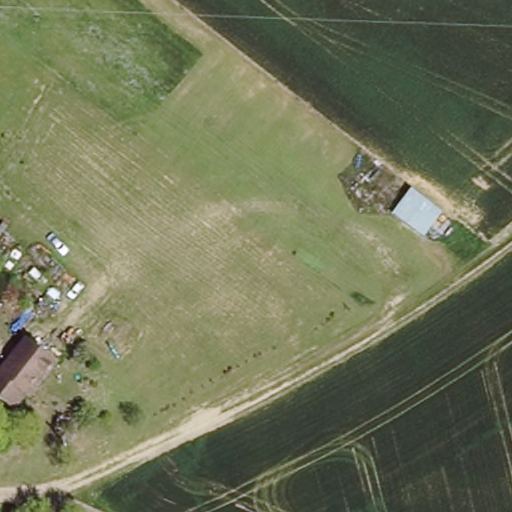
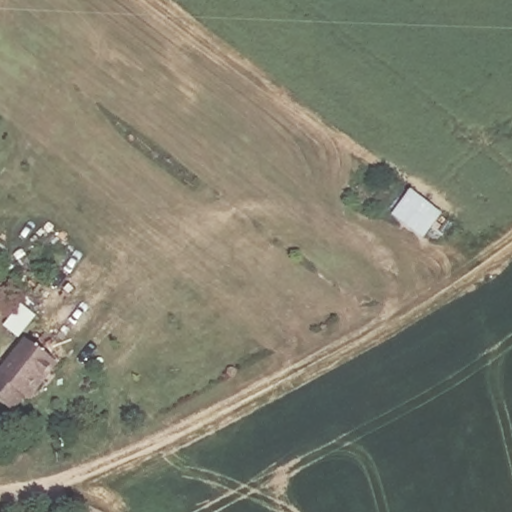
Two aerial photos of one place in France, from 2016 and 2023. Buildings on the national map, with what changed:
unchanged [(413,189),(446,213),(425,238),(395,214),(413,189)]
unchanged [(30,397),(26,394),(14,411),(0,399),(0,373),(3,376),(28,342),(56,363),(30,397)]

